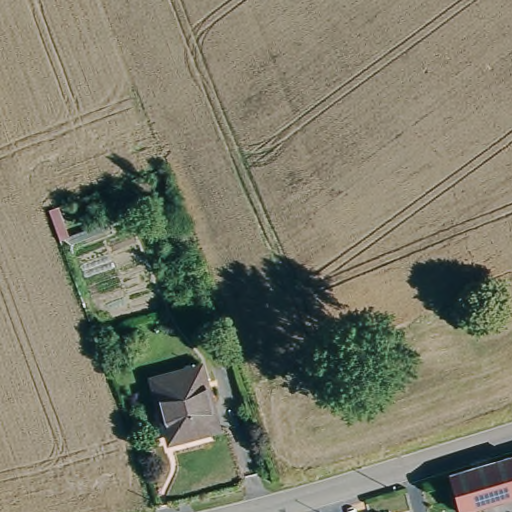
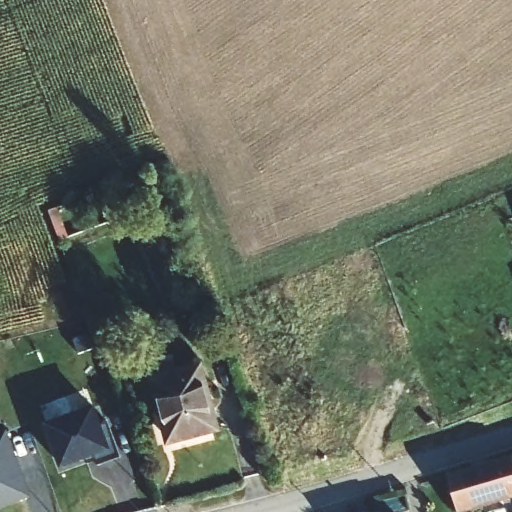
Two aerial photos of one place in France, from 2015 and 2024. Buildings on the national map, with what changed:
unchanged [(61,202),(67,220),(53,224),(46,207),(61,202)]
unchanged [(188,369),(212,431),(169,445),(147,385),(188,369)]
new [(119,457),(98,464),(96,457),(60,470),(50,425),(96,408),(102,425),(119,457)]
new [(0,509),(0,432),(7,430),(32,497),(0,509)]
unchanged [(512,454),(512,458),(511,455),(512,454)]
unchanged [(511,455),(512,458),(512,495),(480,504),(466,508),(458,511),(447,473),(511,455)]

